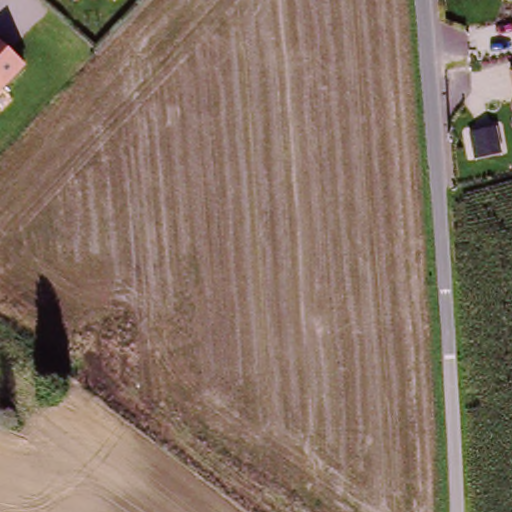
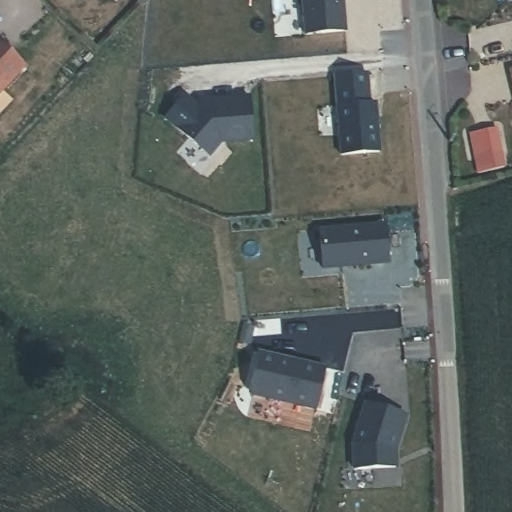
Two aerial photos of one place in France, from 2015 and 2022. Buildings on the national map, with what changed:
new [(302,0),(343,0),(347,33),(305,35),(302,0)]
unchanged [(25,69),(0,96),(0,46),(25,69)]
new [(222,141),(209,156),(163,118),(183,92),(197,104),(249,95),(252,141),(222,141)]
new [(341,154),(337,105),(377,103),(380,152),(341,154)]
new [(323,268),(320,229),(387,224),(390,265),(323,268)]
new [(254,397),(247,388),(260,351),(326,368),(315,411),(254,397)]
new [(354,471),(350,444),(365,402),(407,417),(397,450),(397,469),(354,471)]

